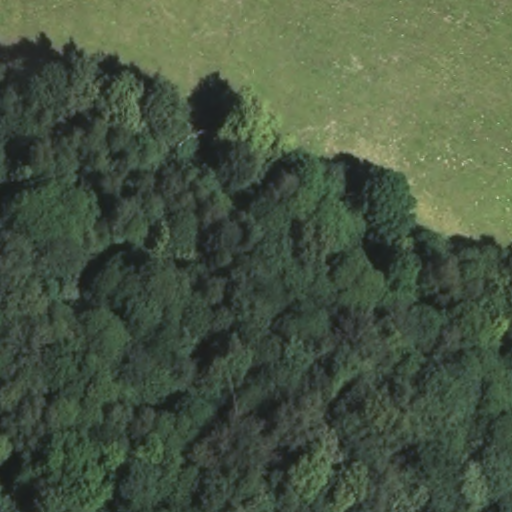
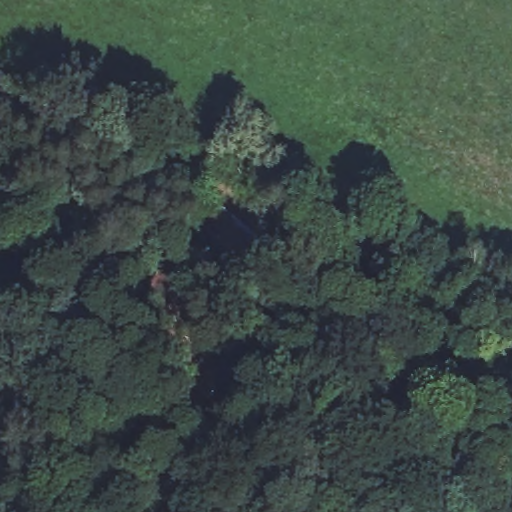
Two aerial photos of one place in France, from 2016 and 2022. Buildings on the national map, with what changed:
unchanged [(208,197),(255,235),(237,255),(194,220),(208,197)]

